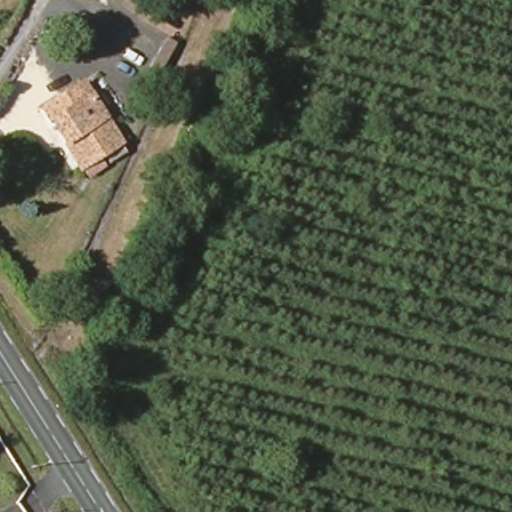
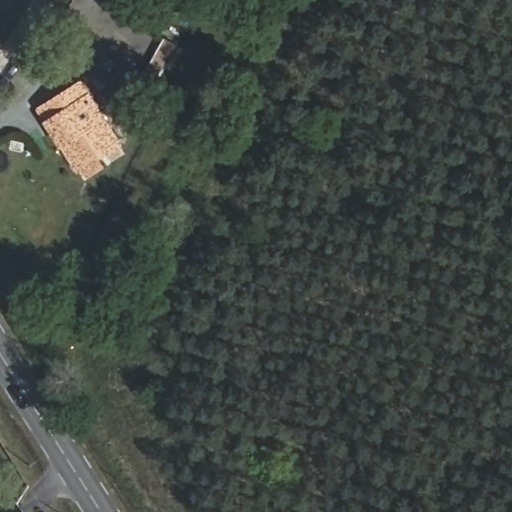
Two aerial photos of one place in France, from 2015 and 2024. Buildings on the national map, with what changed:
unchanged [(140,79),(168,18),(181,24),(154,85),(140,79)]
unchanged [(85,175),(79,164),(63,140),(52,123),(40,104),(82,77),(121,138),(97,153),(105,163),(85,175)]

